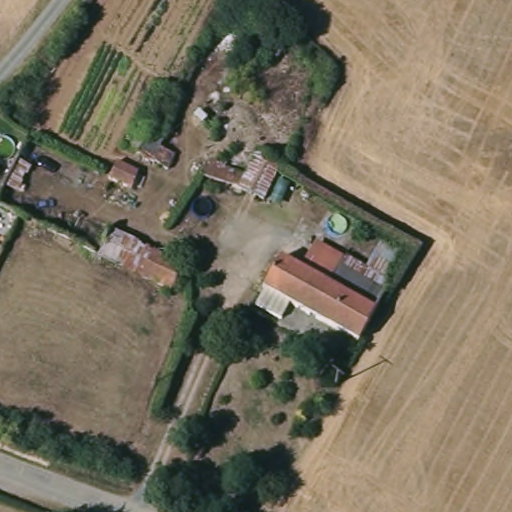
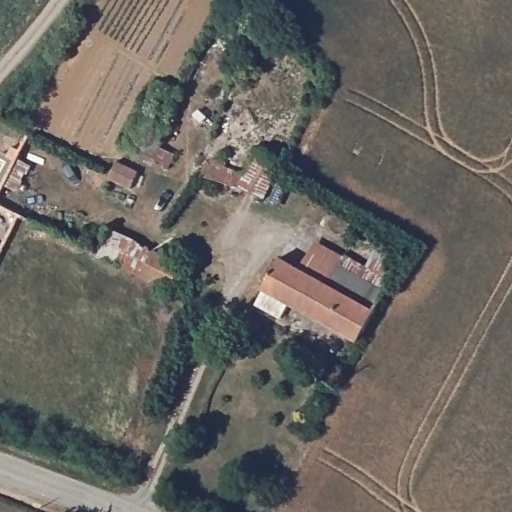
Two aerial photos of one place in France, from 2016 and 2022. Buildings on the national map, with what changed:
unchanged [(152,80),(179,93),(156,146),(172,154),(164,169),(124,147),(152,80)]
unchanged [(201,164),(241,177),(254,152),(276,164),(260,203),(197,179),(201,164)]
unchanged [(118,163),(140,174),(133,187),(112,175),(118,163)]
unchanged [(116,229),(185,264),(170,294),(147,282),(102,258),(116,229)]
unchanged [(5,248),(0,257),(0,258),(0,245),(5,248)]
unchanged [(325,248),(392,284),(377,312),(308,275),(325,248)]
unchanged [(256,308),(265,292),(281,260),(308,275),(377,312),(360,343),(293,308),(285,323),(256,308)]

